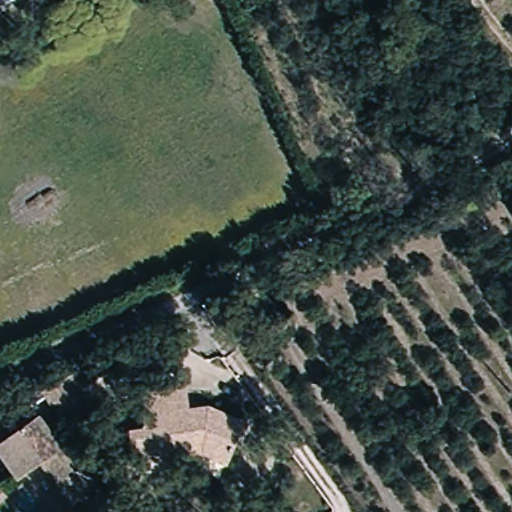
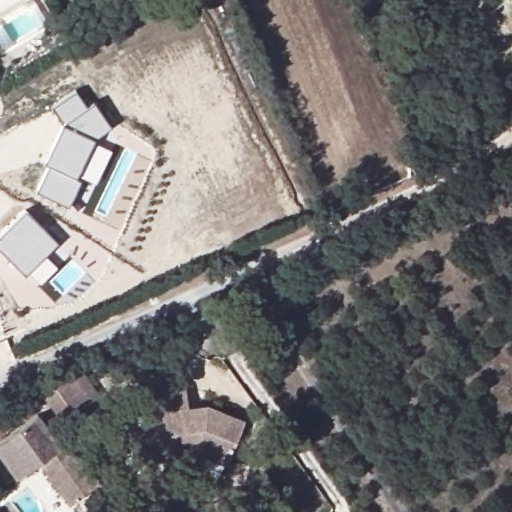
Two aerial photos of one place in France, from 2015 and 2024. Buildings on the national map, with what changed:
new [(47,163),(43,161),(62,124),(50,104),(74,87),(87,105),(93,102),(109,125),(96,137),(94,141),(111,148),(94,182),(76,174),(75,178),(79,180),(66,205),(35,190),(47,163)]
new [(57,242),(45,255),(56,266),(40,282),(28,270),(23,273),(0,249),(0,231),(24,209),(57,242)]
unchanged [(46,394),(58,386),(71,378),(87,404),(76,412),(63,421),(46,394)]
unchanged [(233,463),(207,452),(137,460),(135,431),(147,430),(144,391),(185,388),(186,409),(209,406),(226,411),(248,419),(233,463)]
unchanged [(65,452),(74,447),(101,484),(71,504),(43,461),(19,478),(0,452),(0,441),(40,415),(65,452)]

